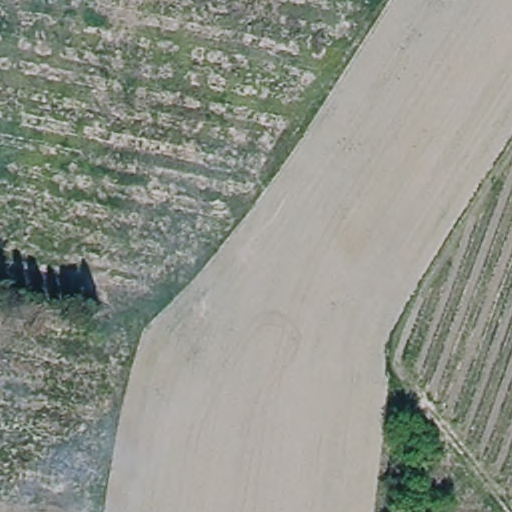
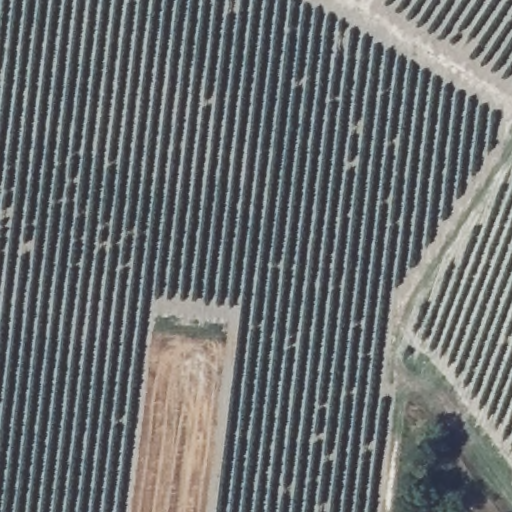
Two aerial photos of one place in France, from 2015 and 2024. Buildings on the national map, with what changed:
[]

